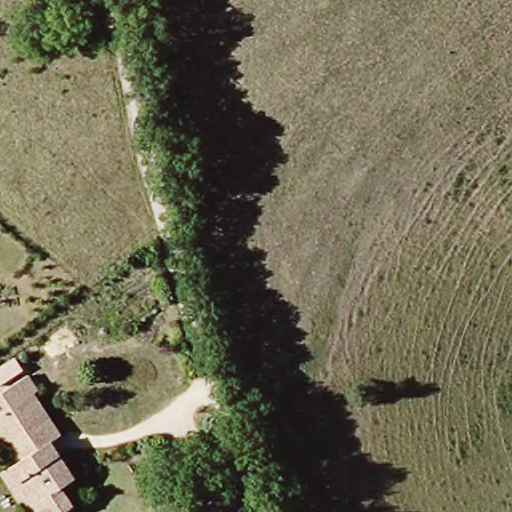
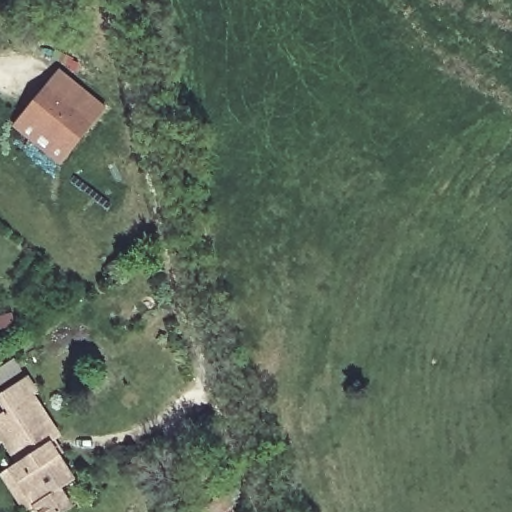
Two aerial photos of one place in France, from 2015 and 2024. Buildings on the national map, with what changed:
new [(59,70),(90,94),(107,107),(64,163),(22,129),(16,125),(33,103),(47,85),(59,70)]
unchanged [(0,428),(0,407),(8,402),(1,386),(30,369),(39,386),(34,389),(57,429),(47,434),(72,479),(58,489),(67,503),(52,512),(35,512),(12,473),(5,461),(15,454),(0,428)]

